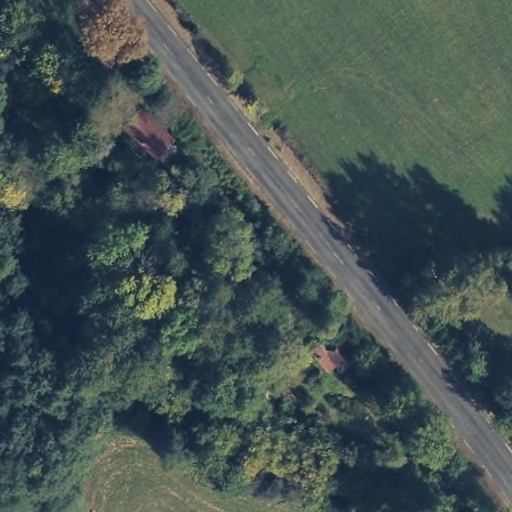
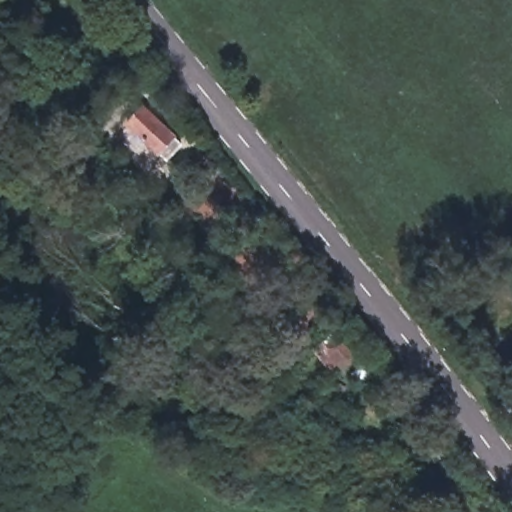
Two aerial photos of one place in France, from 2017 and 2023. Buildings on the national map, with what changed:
unchanged [(187,148),(175,163),(163,153),(154,164),(113,126),(137,100),(187,148)]
unchanged [(357,352),(342,364),(327,349),(343,335),(357,352)]
unchanged [(399,453),(392,461),(387,452),(393,447),(399,453)]

